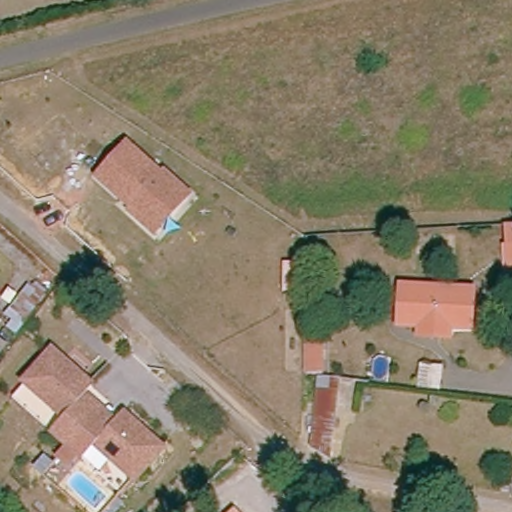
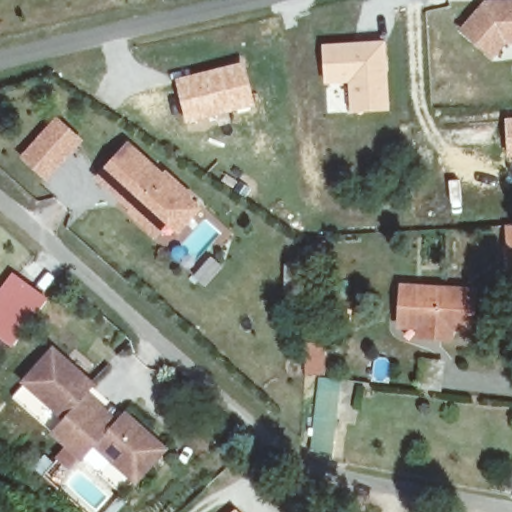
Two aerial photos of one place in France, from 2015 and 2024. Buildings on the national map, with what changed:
new [(506,40),(493,54),(464,29),(488,3),(507,2),(512,2),(512,40),(506,40)]
new [(383,42),(386,109),(349,111),(348,80),(326,80),(324,47),(383,42)]
new [(243,62),(255,106),(185,124),(175,79),(243,62)]
new [(83,140),(46,182),(18,157),(56,116),(83,140)]
new [(512,117),(512,159),(506,160),(503,118),(512,117)]
unchanged [(186,197),(157,229),(103,179),(132,148),(186,197)]
unchanged [(510,244),(509,223),(512,223),(512,280),(510,244)]
new [(13,347),(0,337),(0,288),(12,272),(48,299),(13,347)]
unchanged [(474,288),(471,329),(451,327),(450,339),(422,337),(423,326),(401,325),(404,283),(474,288)]
unchanged [(308,342),(323,342),(322,372),(307,372),(308,342)]
unchanged [(160,456),(133,486),(119,500),(81,465),(66,450),(12,400),(26,386),(53,357),(92,392),(85,400),(100,413),(115,427),(121,420),(160,456)]
new [(442,385),(421,382),(424,358),(445,362),(442,385)]
unchanged [(321,376),(321,375),(340,378),(328,458),(310,447),(321,376)]
unchanged [(435,408),(414,405),(418,382),(439,386),(435,408)]

